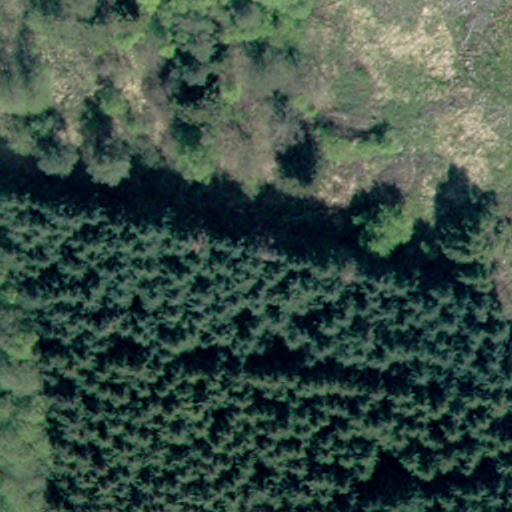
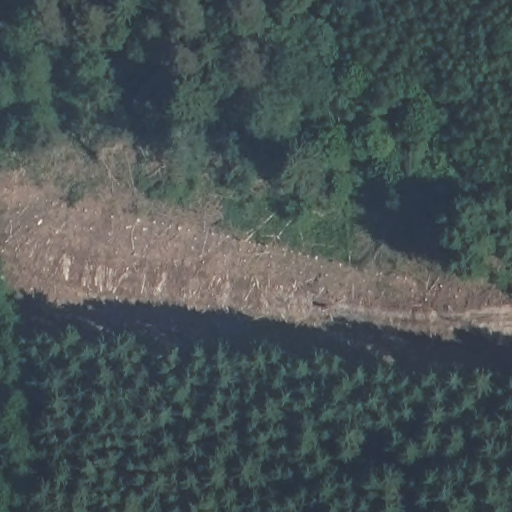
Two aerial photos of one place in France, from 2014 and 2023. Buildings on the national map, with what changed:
[]

